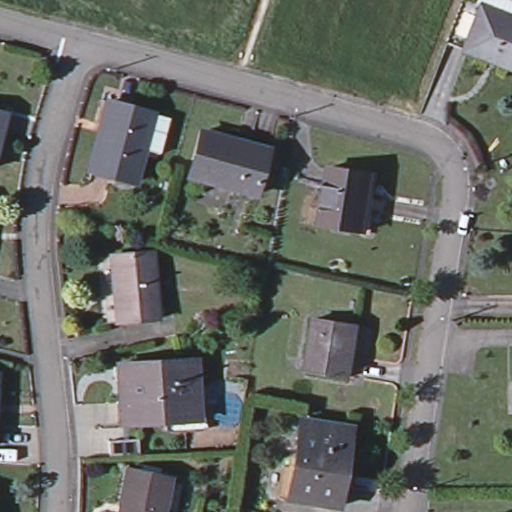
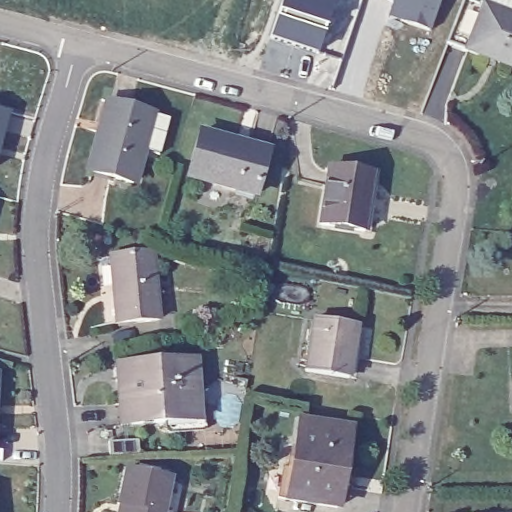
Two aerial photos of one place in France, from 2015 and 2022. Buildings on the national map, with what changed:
new [(271,36),(283,0),(332,0),(316,51),(271,36)]
new [(392,1),(390,0),(439,0),(429,30),(399,19),(387,15),(389,10),(392,1)]
unchanged [(466,55),(446,47),(464,2),(479,8),(482,0),(500,0),(512,4),(512,20),(484,10),(466,55)]
unchanged [(484,10),(512,20),(512,73),(466,55),(484,10)]
unchanged [(84,170),(101,100),(145,111),(164,115),(155,153),(136,148),(128,180),(84,170)]
unchanged [(0,125),(0,107),(4,109),(0,125)]
unchanged [(191,179),(204,134),(239,144),(238,148),(269,156),(258,198),(191,179)]
unchanged [(372,172),(369,196),(366,196),(361,230),(319,224),(326,166),(372,172)]
unchanged [(158,317),(115,321),(113,299),(116,299),(113,253),(153,251),(158,317)]
unchanged [(355,324),(347,376),(303,369),(311,317),(355,324)]
unchanged [(169,425),(167,423),(166,414),(122,416),(119,358),(195,354),(199,406),(199,425),(169,425)]
unchanged [(349,426),(336,505),(286,497),(299,419),(349,426)]
unchanged [(110,435),(140,434),(141,446),(110,448),(110,435)]
unchanged [(120,502),(115,501),(123,465),(164,475),(158,509),(163,510),(162,512),(118,512),(120,502)]
unchanged [(174,512),(162,512),(163,510),(174,512)]

